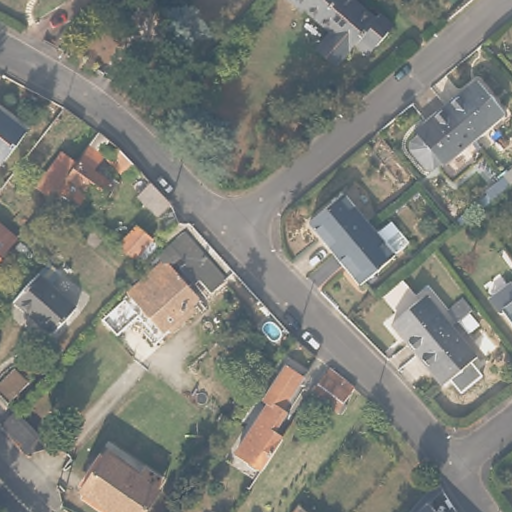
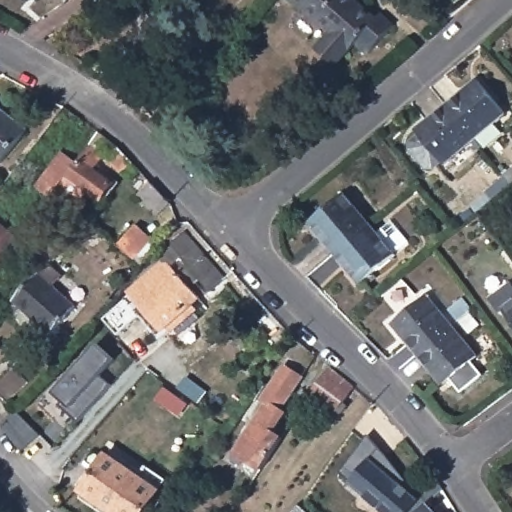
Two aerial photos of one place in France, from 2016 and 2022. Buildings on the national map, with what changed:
unchanged [(380,14),(393,25),(369,52),(365,55),(353,45),(333,67),(313,50),(329,31),(304,8),(301,11),(289,0),(354,0),(375,18),(380,14)]
unchanged [(478,85),(504,119),(474,145),(470,140),(446,111),(478,85)]
unchanged [(28,135),(0,166),(0,110),(28,135)]
unchanged [(470,140),(474,145),(444,170),(442,166),(434,172),(427,172),(411,153),(412,146),(419,140),(416,136),(446,111),(470,140)]
unchanged [(96,130),(103,135),(93,147),(101,154),(91,167),(113,184),(117,180),(121,184),(109,199),(105,195),(100,201),(88,192),(79,204),(60,190),(56,195),(49,190),(95,132),(96,130)]
unchanged [(136,169),(127,177),(106,155),(115,146),(136,169)]
unchanged [(70,159),(45,192),(34,184),(60,151),(70,159)]
unchanged [(172,201),(160,211),(140,191),(152,179),(172,201)]
unchanged [(309,226),(340,199),(368,229),(337,256),(309,226)]
unchanged [(156,235),(139,257),(122,244),(140,222),(156,235)]
unchanged [(368,229),(376,237),(390,226),(407,245),(393,257),(394,258),(364,285),(337,256),(368,229)]
unchanged [(230,277),(208,297),(173,258),(167,265),(194,295),(162,325),(144,305),(116,331),(103,317),(123,297),(122,296),(135,282),(132,280),(153,260),(151,257),(184,227),(230,277)]
unchanged [(15,242),(3,256),(0,258),(0,229),(15,242)]
unchanged [(53,338),(24,313),(14,303),(17,301),(49,266),(54,271),(46,281),(45,280),(43,282),(48,287),(76,312),(53,338)]
unchanged [(500,315),(488,300),(510,283),(512,286),(512,326),(503,313),(500,315)]
unchanged [(387,328),(423,297),(451,327),(416,359),(387,328)]
unchanged [(451,327),(475,353),(440,386),(416,359),(451,327)]
new [(100,374),(111,383),(78,422),(57,406),(61,401),(52,393),(96,345),(112,360),(100,374)]
unchanged [(302,372),(282,407),(287,410),(275,429),(283,434),(267,460),(262,467),(238,452),(270,400),(264,396),(285,361),(302,372)]
unchanged [(27,380),(7,401),(0,395),(0,378),(12,366),(27,380)]
unchanged [(348,390),(338,401),(342,407),(336,414),(309,392),(324,367),(348,390)]
demolished [(68,405),(43,440),(25,453),(0,426),(0,423),(15,407),(30,423),(54,391),(68,405)]
new [(405,486),(419,498),(435,480),(442,488),(428,502),(419,512),(385,512),(351,482),(341,473),(367,433),(405,486)]
unchanged [(146,465),(166,478),(159,489),(142,512),(112,512),(81,490),(107,452),(139,475),(146,465)]
unchanged [(427,486),(419,479),(425,472),(432,480),(427,486)]
unchanged [(312,512),(294,512),(301,502),(312,512)]
unchanged [(428,502),(437,512),(419,512),(428,502)]

